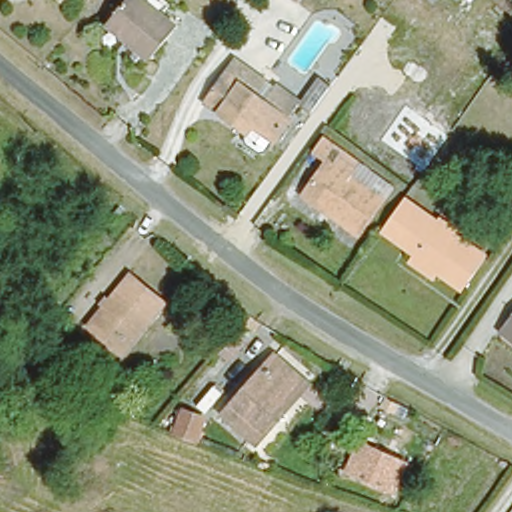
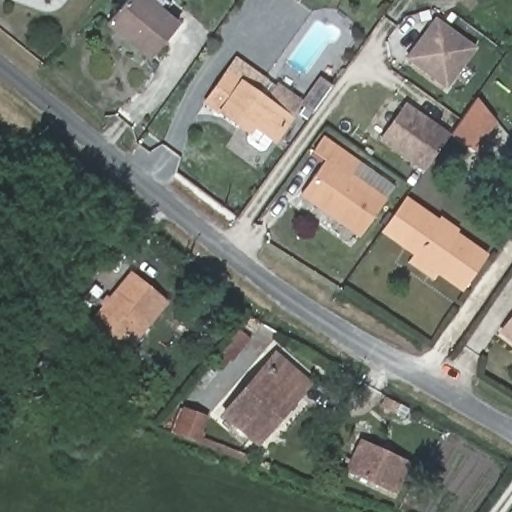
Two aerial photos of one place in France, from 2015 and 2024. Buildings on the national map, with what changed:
unchanged [(105,25),(124,0),(169,0),(175,5),(168,16),(182,28),(155,63),(105,25)]
unchanged [(285,0),(300,0),(296,7),(285,0)]
new [(444,92),(404,60),(435,17),(476,47),(444,92)]
unchanged [(285,116),(287,117),(271,142),(253,131),(249,138),(217,118),(202,108),(222,76),(224,77),(232,63),(273,89),(274,86),(295,100),(285,116)]
new [(512,72),(512,76),(511,75),(512,72)]
new [(475,152),(450,134),(476,97),(495,121),(475,152)]
new [(423,173),(378,141),(404,102),(450,134),(423,173)]
unchanged [(355,175),(390,199),(363,239),(298,197),(311,177),(296,168),(322,131),(365,160),(355,175)]
unchanged [(404,265),(413,252),(384,231),(403,204),(406,199),(494,257),(469,292),(444,275),(435,286),(404,265)]
unchanged [(123,356),(90,327),(94,323),(138,273),(170,303),(123,356)]
unchanged [(512,324),(512,344),(503,338),(512,324)]
unchanged [(262,446),(223,412),(278,353),(286,361),(313,385),(262,446)]
unchanged [(186,407),(210,415),(201,444),(177,433),(186,407)]
new [(395,493),(344,471),(357,439),(409,462),(395,493)]

